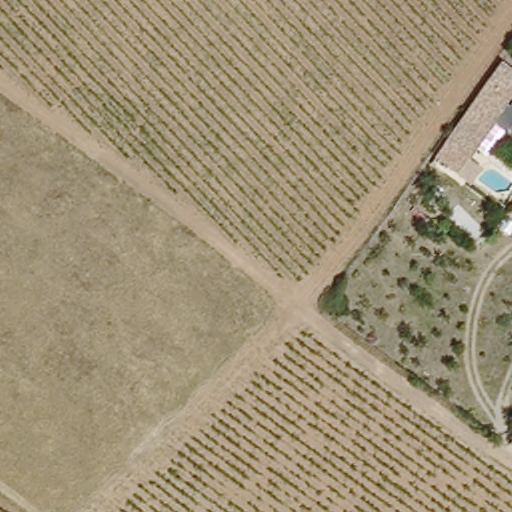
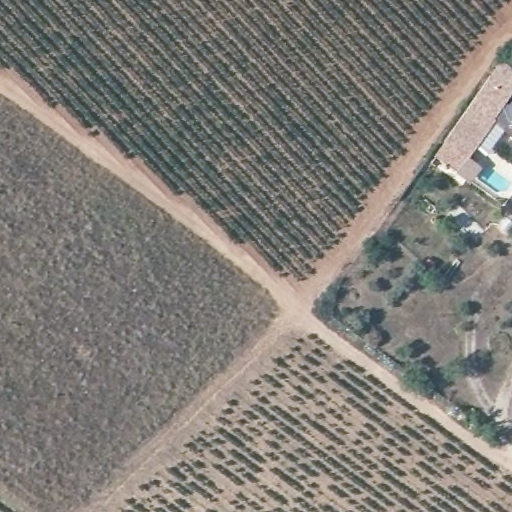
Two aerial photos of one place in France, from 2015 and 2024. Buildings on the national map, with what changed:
unchanged [(442,140),(500,59),(512,66),(512,89),(465,157),(442,140)]
unchanged [(512,126),(512,135),(507,131),(512,126)]

